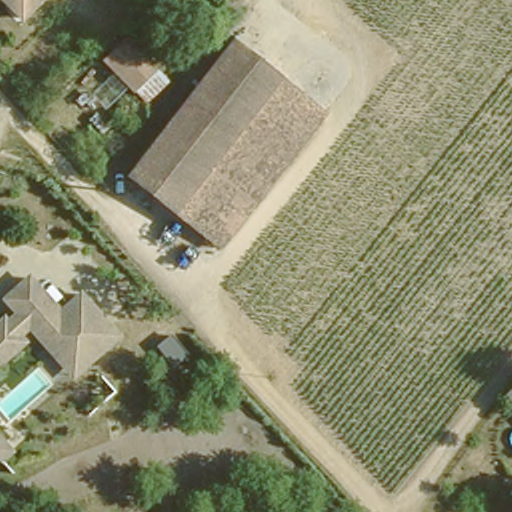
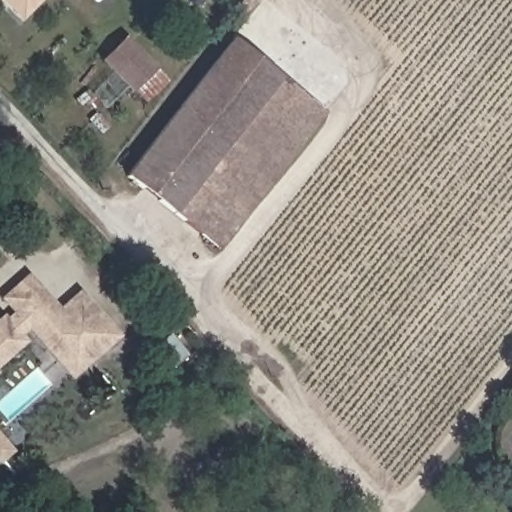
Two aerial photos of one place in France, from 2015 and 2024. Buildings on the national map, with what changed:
unchanged [(25,12),(14,0),(38,0),(25,12)]
unchanged [(237,33),(323,108),(218,238),(165,199),(124,165),(237,33)]
unchanged [(109,58),(131,38),(157,68),(136,86),(109,58)]
unchanged [(27,326),(16,335),(22,342),(0,361),(0,321),(2,319),(13,309),(4,299),(28,278),(59,312),(79,294),(116,336),(86,362),(71,376),(58,361),(27,326)]
unchanged [(512,384),(512,399),(505,390),(512,384)]
unchanged [(3,462),(0,460),(0,437),(14,453),(3,462)]

